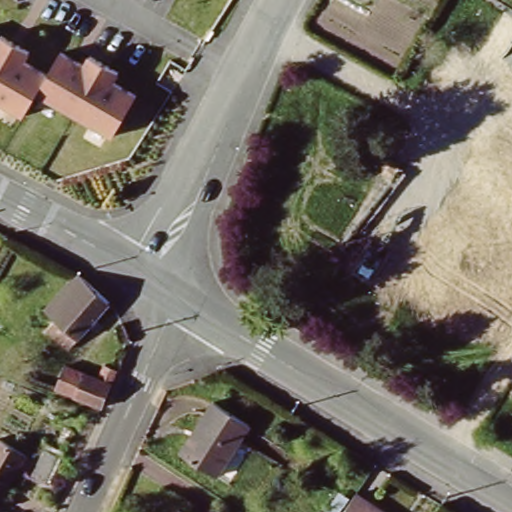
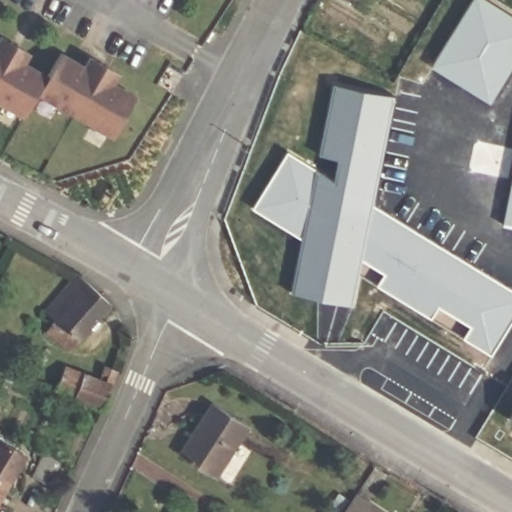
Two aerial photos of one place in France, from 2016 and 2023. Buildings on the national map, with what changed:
new [(487,0),(512,16),(512,69),(491,102),(433,67),(475,0),(487,0)]
demolished [(512,0),(512,1),(511,0),(512,0)]
unchanged [(31,51),(25,60),(47,72),(60,50),(84,63),(89,54),(120,72),(115,81),(139,95),(114,137),(37,93),(24,117),(0,103),(0,34),(31,51)]
new [(289,152),(336,181),(340,160),(320,155),(335,85),(395,96),(375,204),(363,260),(354,306),(292,293),(303,240),(254,210),(289,152)]
new [(512,227),(505,226),(512,191),(512,227)]
new [(512,289),(512,325),(493,356),(465,340),(473,327),(440,307),(433,320),(379,286),(386,274),(363,260),(375,204),(512,289)]
unchanged [(99,287),(107,292),(111,302),(68,350),(46,330),(55,321),(44,311),(77,274),(99,287)]
unchanged [(54,390),(57,381),(50,377),(55,362),(97,378),(102,365),(117,370),(102,408),(54,390)]
unchanged [(247,424),(212,473),(175,451),(209,401),(247,424)]
new [(512,421),(511,420),(512,418),(512,421)]
unchanged [(21,461),(0,494),(0,448),(21,461)]
unchanged [(64,458),(47,485),(35,477),(52,451),(64,458)]
unchanged [(354,497),(368,506),(379,512),(344,512),(354,497)]
unchanged [(182,508),(188,512),(180,512),(182,508)]

